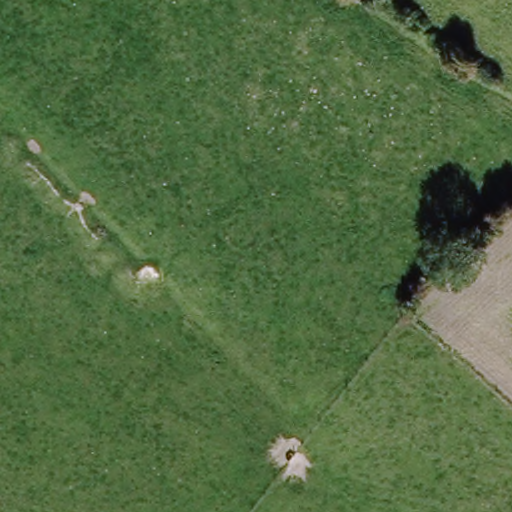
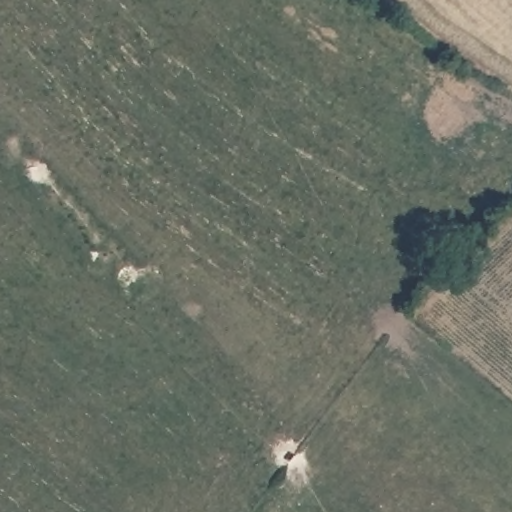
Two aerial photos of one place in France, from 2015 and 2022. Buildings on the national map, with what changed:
[]

